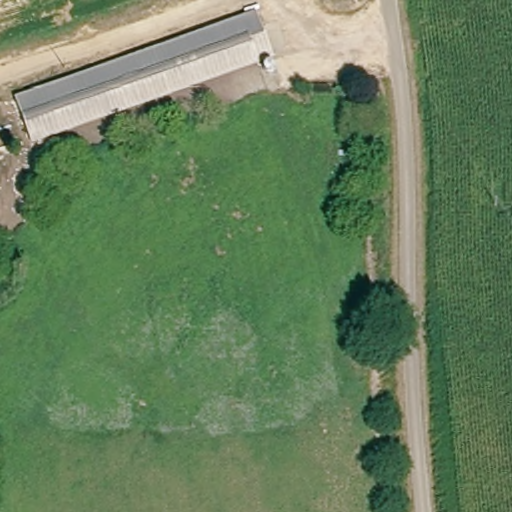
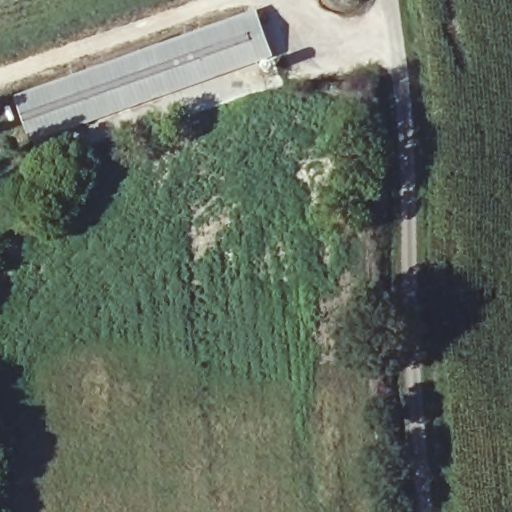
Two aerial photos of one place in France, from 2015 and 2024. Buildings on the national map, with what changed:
unchanged [(18,94),(246,26),(262,21),(277,66),(262,71),(32,140),(18,94)]

